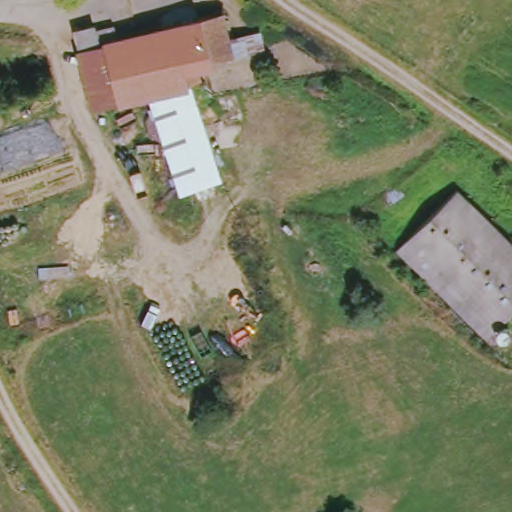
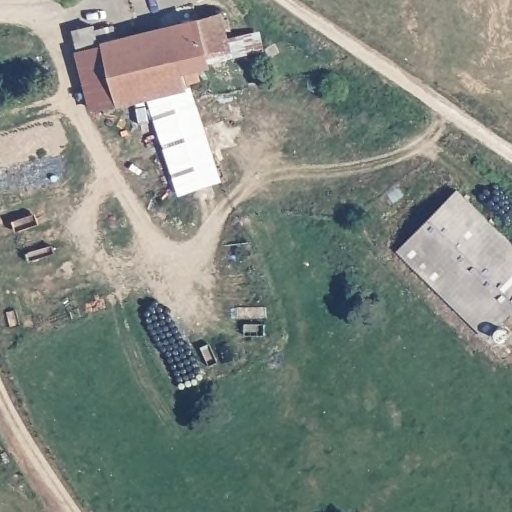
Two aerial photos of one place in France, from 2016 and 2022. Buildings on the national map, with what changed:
unchanged [(224,9),(235,52),(211,60),(199,16),(224,9)]
unchanged [(118,39),(199,16),(211,60),(184,67),(217,184),(176,195),(148,95),(96,112),(77,45),(73,29),(93,22),(95,32),(115,25),(115,29),(118,39)]
unchanged [(444,286),(438,292),(397,252),(457,190),(512,242),(512,312),(491,334),(444,286)]

